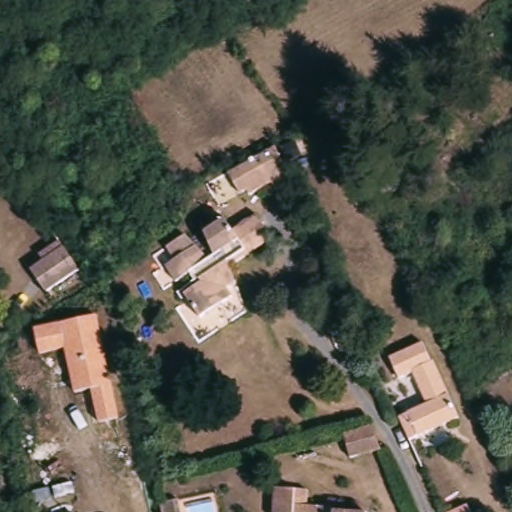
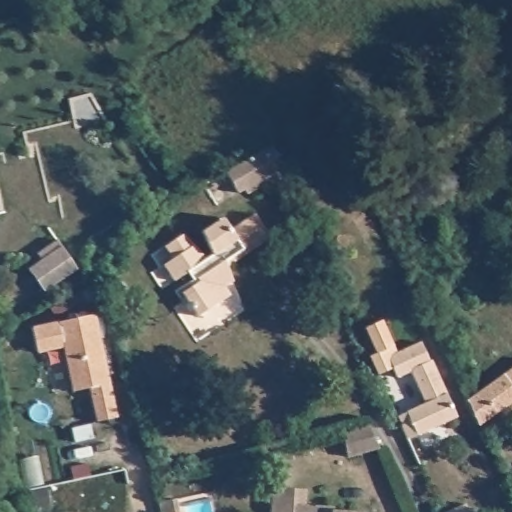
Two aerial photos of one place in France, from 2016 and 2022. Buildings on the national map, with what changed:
unchanged [(269,144),(274,140),(292,175),(277,185),(272,177),(251,191),(248,187),(241,191),(228,171),(269,144)]
unchanged [(168,261),(160,249),(179,236),(207,255),(213,251),(199,231),(219,217),(227,228),(250,212),(266,235),(242,252),(225,264),(230,280),(224,285),(229,294),(197,317),(177,290),(193,278),(188,271),(171,282),(160,267),(168,261)]
unchanged [(77,275),(44,295),(30,271),(42,263),(39,257),(59,245),(77,275)]
unchanged [(100,423),(91,388),(75,392),(65,350),(40,355),(34,328),(96,315),(119,419),(100,423)]
unchanged [(412,453),(411,453),(404,436),(401,430),(429,418),(415,386),(401,392),(391,371),(424,356),(433,375),(435,375),(461,431),(412,453)]
new [(512,393),(511,394),(512,396),(512,400),(473,427),(462,402),(512,366),(512,393)]
unchanged [(343,430),(371,422),(382,446),(349,455),(343,430)]
unchanged [(294,487),(293,502),(334,506),(334,510),(356,512),(271,512),(274,485),(294,487)]
unchanged [(177,512),(167,512),(167,509),(176,506),(177,512)]
unchanged [(74,512),(67,512),(74,510),(74,512)]

